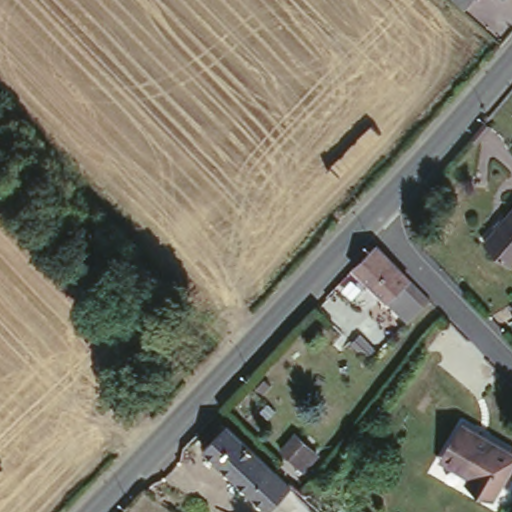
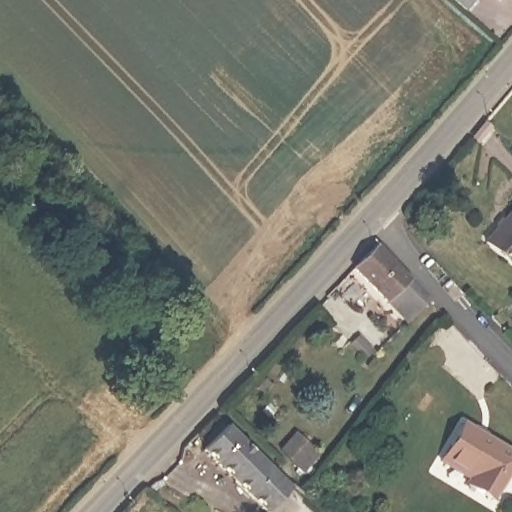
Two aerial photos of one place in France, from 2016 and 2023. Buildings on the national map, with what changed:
unchanged [(461,6),(453,0),(466,0),(461,6)]
unchanged [(512,254),(505,262),(481,239),(512,203),(512,254)]
unchanged [(355,266),(377,243),(432,297),(407,321),(355,266)]
unchanged [(211,436),(209,434),(216,427),(213,425),(223,415),(229,420),(291,484),(267,507),(204,444),(211,436)]
unchanged [(440,462),(443,456),(464,422),(512,448),(512,466),(495,497),(471,484),(467,483),(468,479),(440,462)]
unchanged [(272,512),(262,512),(267,507),(272,512)]

